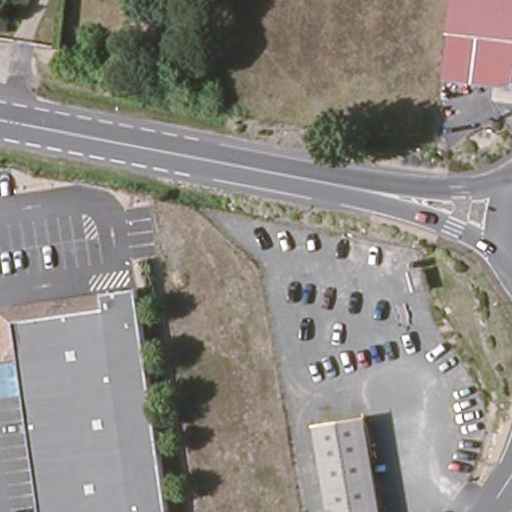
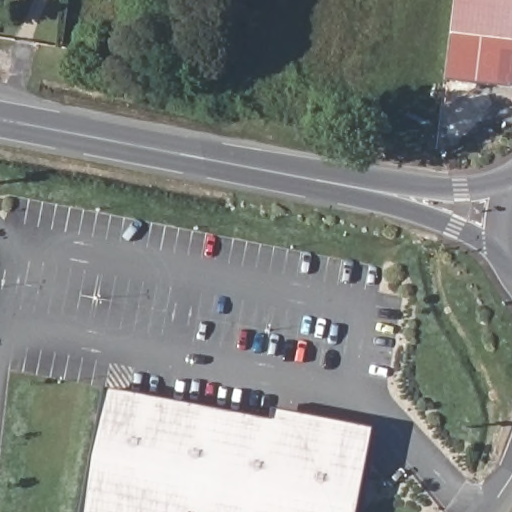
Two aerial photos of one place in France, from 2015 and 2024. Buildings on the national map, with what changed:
unchanged [(494,82),(446,77),(447,67),(455,0),(512,0),(512,85),(510,85),(494,82)]
demolished [(169,512),(42,512),(20,356),(2,359),(0,341),(0,307),(137,286),(169,512)]
new [(353,512),(79,512),(103,388),(269,420),(271,408),(370,428),(353,512)]
demolished [(382,512),(331,512),(317,423),(367,416),(382,512)]

